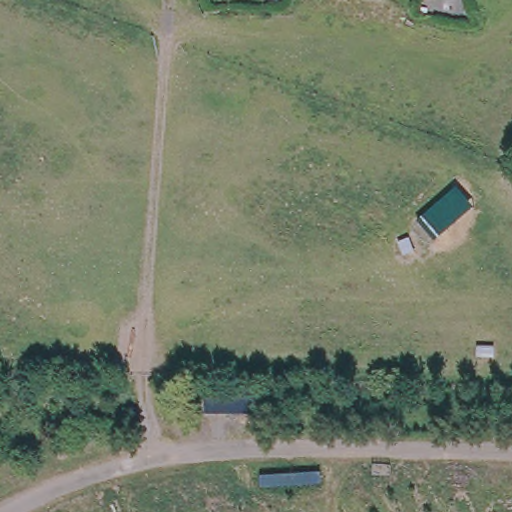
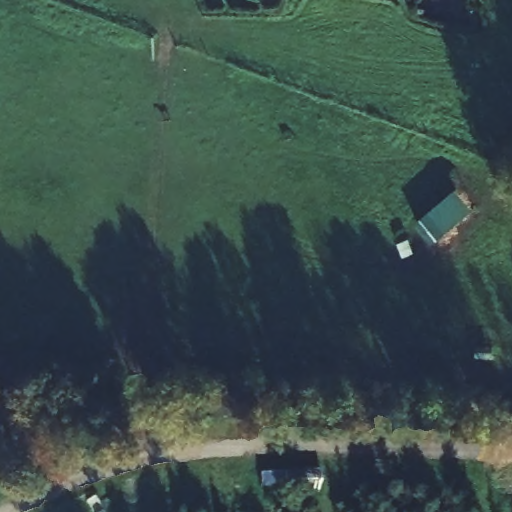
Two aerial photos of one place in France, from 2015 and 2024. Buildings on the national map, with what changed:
unchanged [(282,3),(270,0),(283,0),(282,3)]
unchanged [(474,208),(432,244),(414,222),(457,186),(474,208)]

